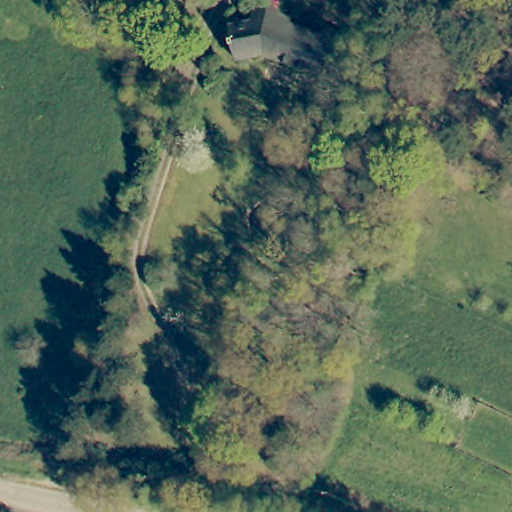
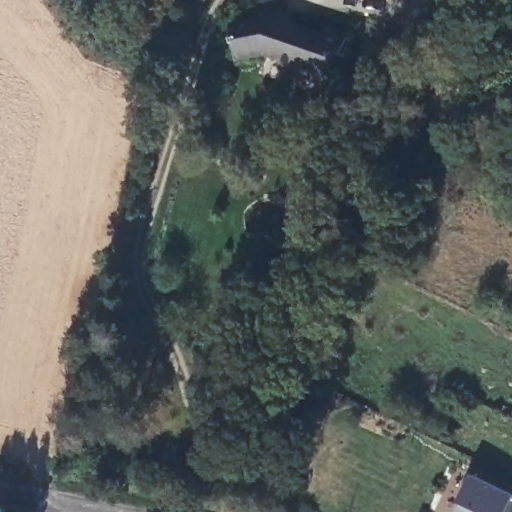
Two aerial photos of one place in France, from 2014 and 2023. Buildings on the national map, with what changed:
unchanged [(292,20),(290,27),(323,38),(326,31),(347,38),(340,58),(333,55),(324,79),(260,56),(239,63),(228,29),(251,22),(248,12),(265,7),(276,12),(292,20)]
new [(459,512),(464,505),(459,503),(473,475),(512,496),(512,512),(459,512)]

